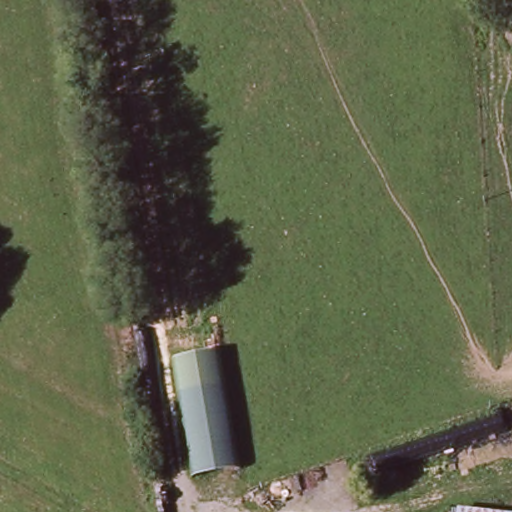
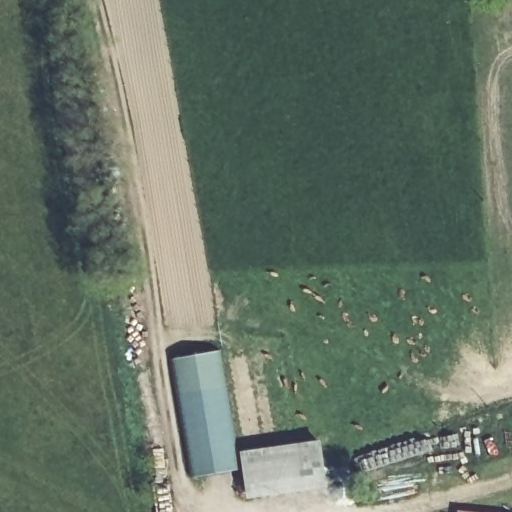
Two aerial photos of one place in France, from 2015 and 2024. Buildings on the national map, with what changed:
unchanged [(221,349),(240,467),(196,474),(179,356),(221,349)]
new [(322,439),(329,487),(248,499),(242,451),(322,439)]
unchanged [(452,512),(453,508),(487,512),(452,512)]

